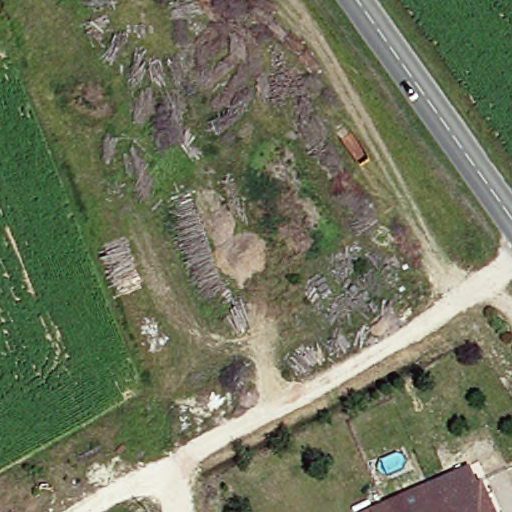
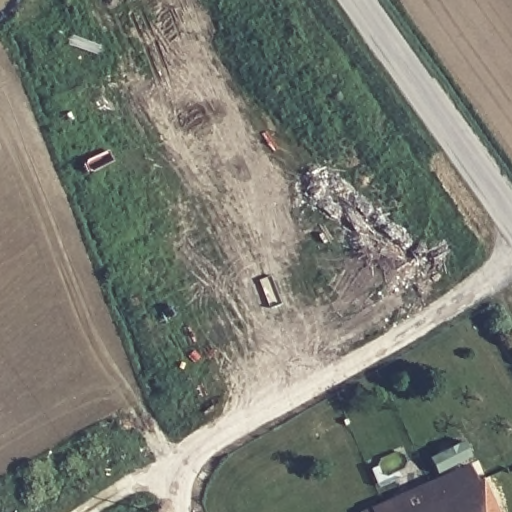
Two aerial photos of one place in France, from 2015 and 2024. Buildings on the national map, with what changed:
unchanged [(481,490),(493,486),(503,512),(373,512),(466,472),(481,490)]

